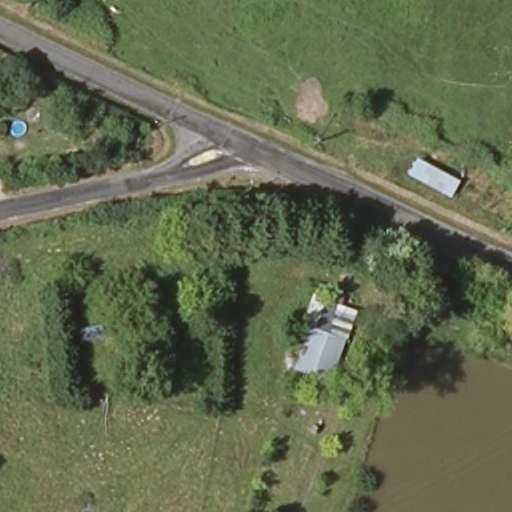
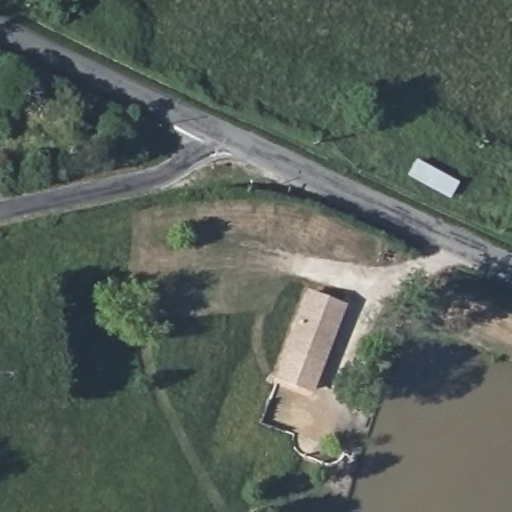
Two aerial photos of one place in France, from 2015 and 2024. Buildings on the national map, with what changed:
new [(332,308),(339,310),(312,387),(279,374),(295,329),(308,291),(334,299),(332,308)]
demolished [(287,387),(306,329),(347,341),(329,395),(287,387)]

